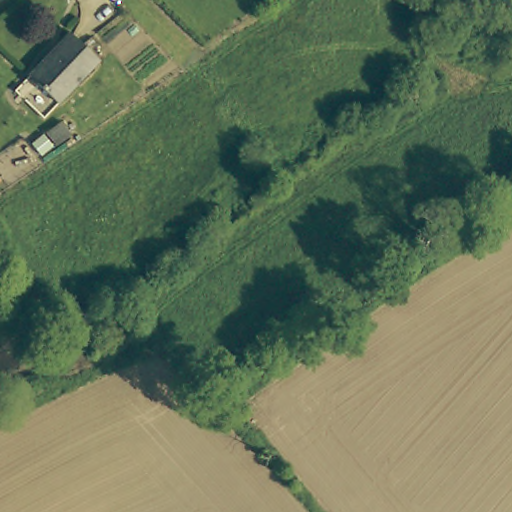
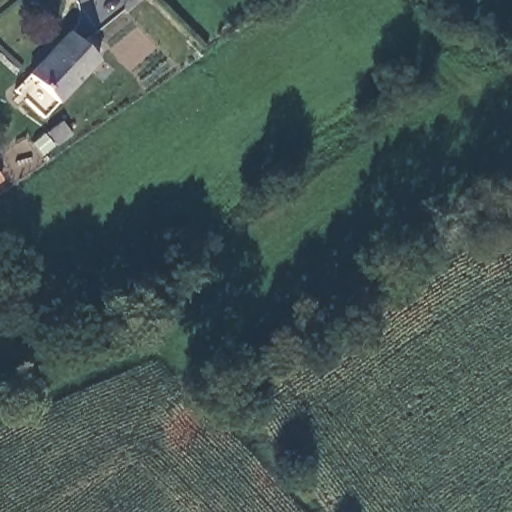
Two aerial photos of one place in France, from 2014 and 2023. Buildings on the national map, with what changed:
unchanged [(76,32),(102,57),(62,98),(36,72),(76,32)]

